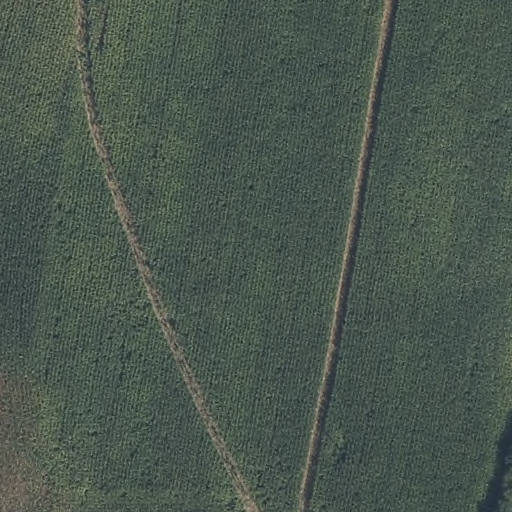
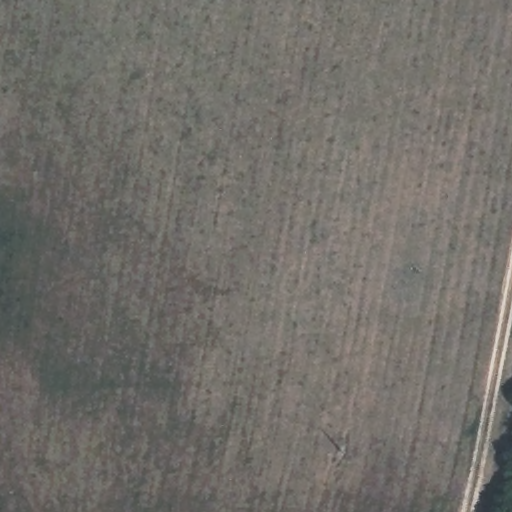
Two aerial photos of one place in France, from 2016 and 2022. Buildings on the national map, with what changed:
[]

